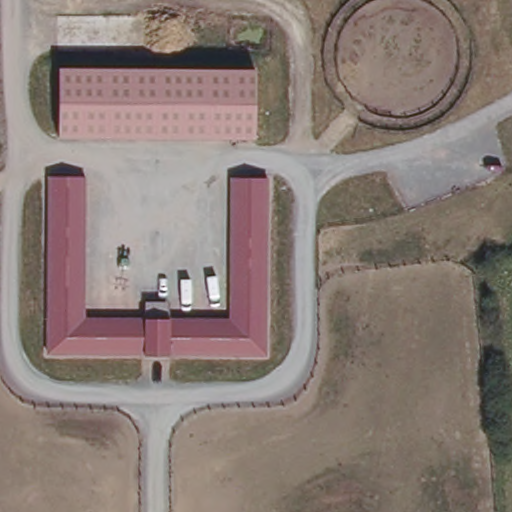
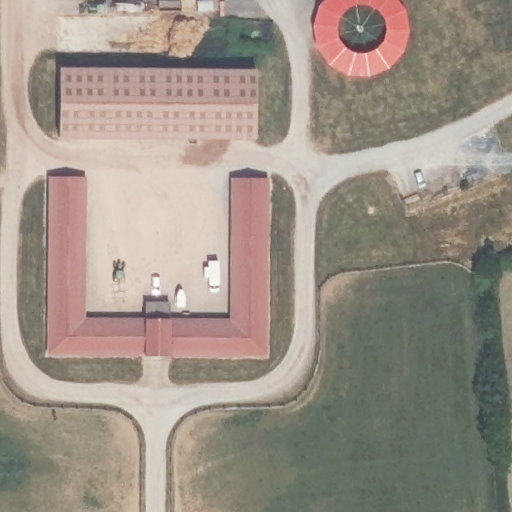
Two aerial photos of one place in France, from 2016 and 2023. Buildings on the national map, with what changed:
new [(409,40),(406,49),(402,58),(396,66),(388,72),(379,76),(370,79),(360,80),(351,79),(341,76),(333,72),(325,66),(319,58),(314,49),(311,40),(310,30),(311,21),(314,11),(319,3),(321,0),(400,0),(402,3),(406,11),(409,21),(410,30),(409,40)]
unchanged [(250,70),(250,137),(55,138),(55,71),(250,70)]
unchanged [(81,179),(83,322),(226,323),(227,178),(267,179),(269,356),(44,355),(44,179),(81,179)]

